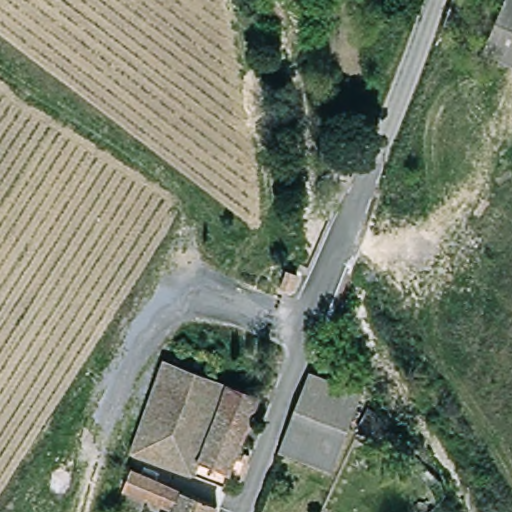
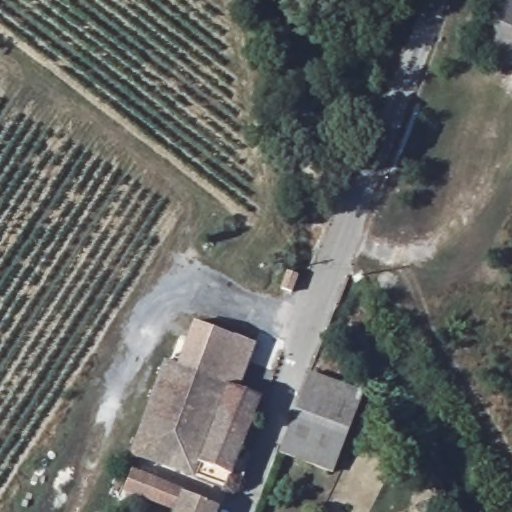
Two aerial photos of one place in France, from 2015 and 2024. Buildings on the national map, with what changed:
unchanged [(512,0),(512,66),(486,54),(512,0)]
new [(193,320),(256,343),(238,391),(230,388),(175,367),(193,320)]
unchanged [(133,454),(167,363),(230,388),(197,465),(230,478),(225,489),(133,454)]
unchanged [(365,393),(335,471),(281,451),(310,374),(365,393)]
unchanged [(230,388),(261,400),(240,453),(250,458),(241,482),(230,478),(197,465),(230,388)]
unchanged [(216,512),(171,512),(138,498),(133,507),(120,501),(131,471),(217,508),(216,512)]

